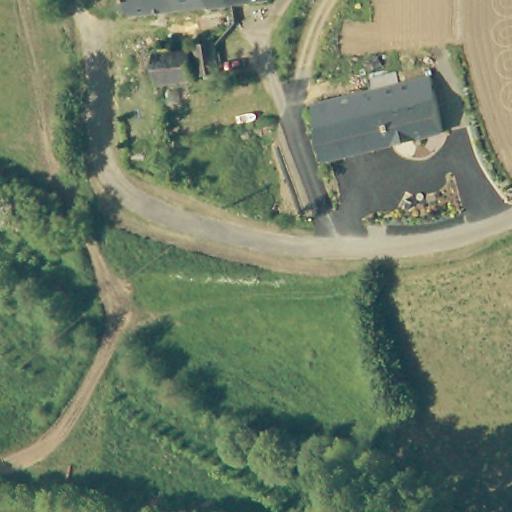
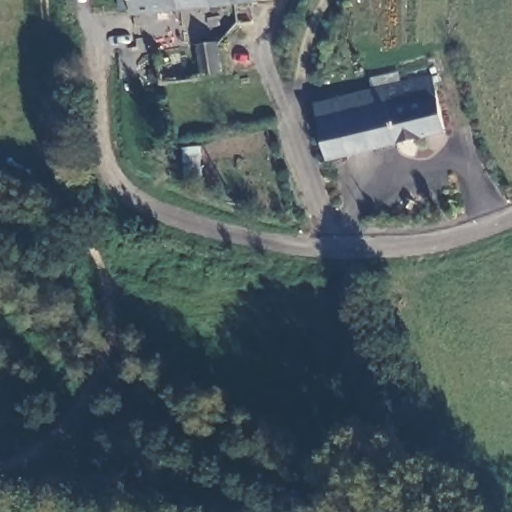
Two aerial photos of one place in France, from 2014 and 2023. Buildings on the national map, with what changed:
unchanged [(132,20),(131,13),(119,15),(117,0),(231,0),(274,0),(274,4),(234,9),(232,9),(214,11),(132,20)]
unchanged [(202,75),(197,45),(216,42),(222,72),(202,75)]
unchanged [(156,55),(192,50),(197,80),(160,85),(156,55)]
unchanged [(383,89),(380,77),(425,66),(428,78),(432,77),(445,132),(396,144),(383,89)]
unchanged [(383,89),(396,144),(328,160),(315,105),(383,89)]

